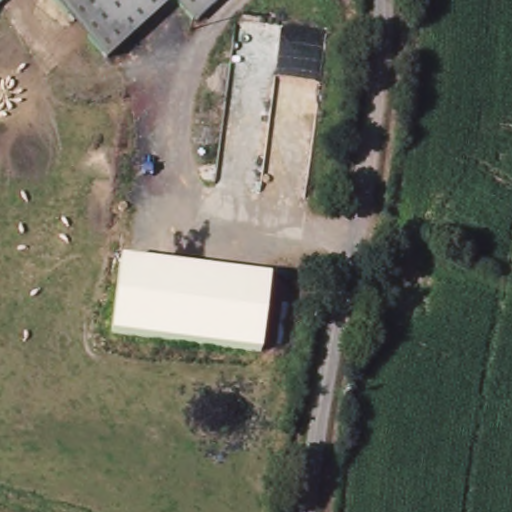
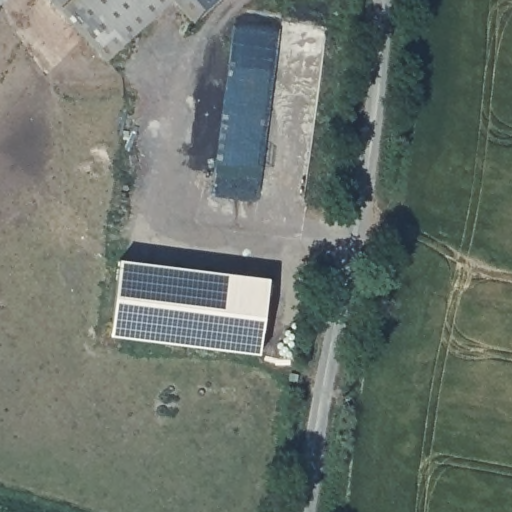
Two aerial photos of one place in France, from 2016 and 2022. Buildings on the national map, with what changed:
unchanged [(4,0),(0,3),(0,0),(4,0)]
unchanged [(174,5),(103,65),(49,0),(225,0),(194,26),(174,5)]
unchanged [(260,355),(111,337),(119,259),(270,278),(260,355)]

